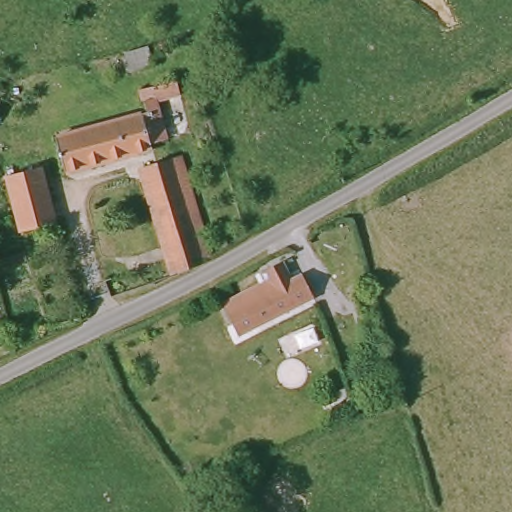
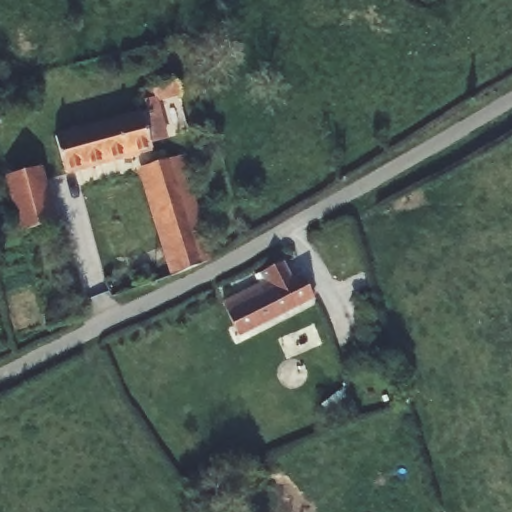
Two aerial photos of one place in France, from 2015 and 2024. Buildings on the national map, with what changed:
unchanged [(153,65),(131,71),(125,54),(148,46),(153,65)]
unchanged [(174,99),(151,105),(161,144),(145,148),(147,154),(60,178),(50,141),(142,117),(139,106),(136,95),(148,93),(171,86),(174,99)]
unchanged [(213,265),(201,270),(178,278),(144,173),(180,161),(213,265)]
unchanged [(35,172),(50,227),(17,236),(2,181),(35,172)]
unchanged [(223,309),(266,288),(261,278),(283,268),(291,287),(303,281),(314,303),(238,341),(223,309)]

